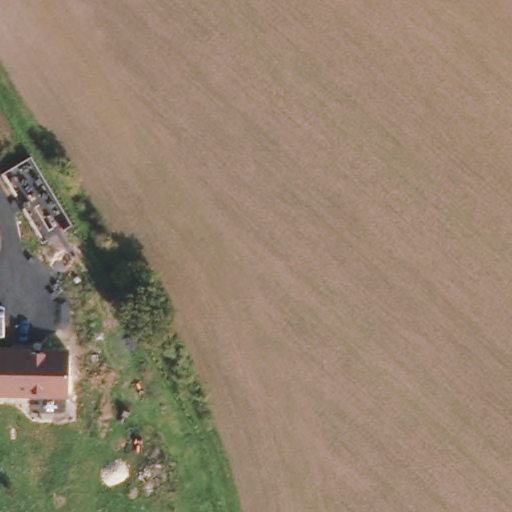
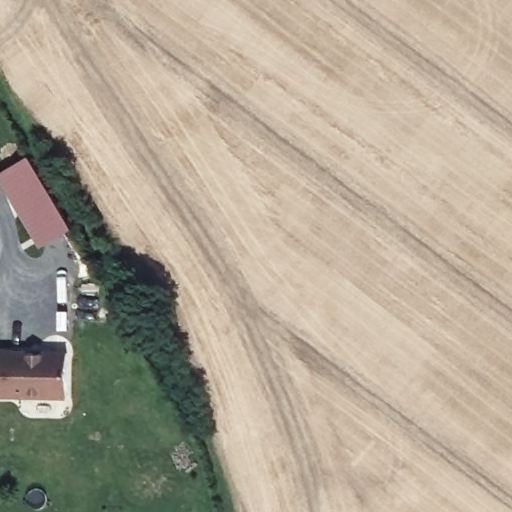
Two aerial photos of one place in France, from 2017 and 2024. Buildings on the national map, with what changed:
new [(72,228),(41,246),(0,178),(0,174),(29,157),(72,228)]
unchanged [(68,399),(0,397),(0,348),(69,349),(68,399)]

